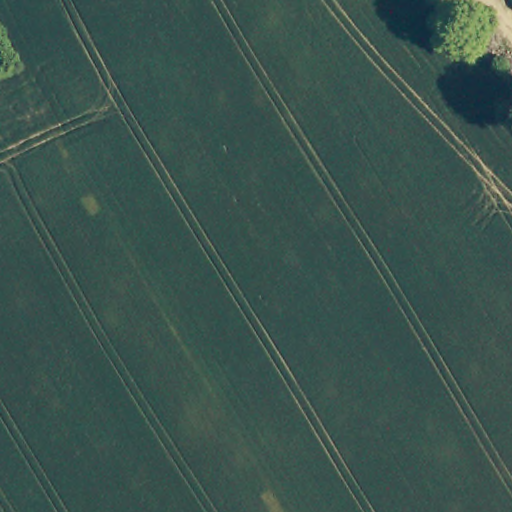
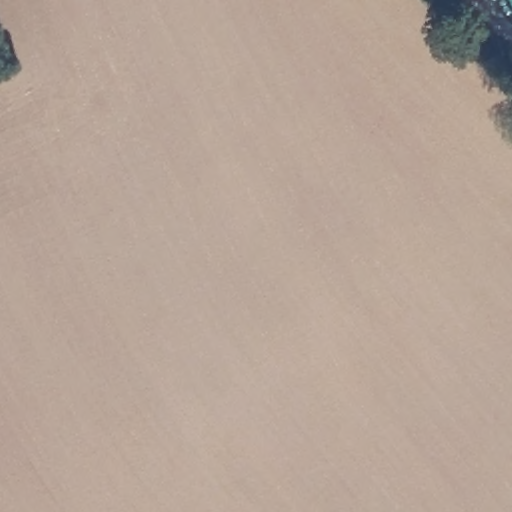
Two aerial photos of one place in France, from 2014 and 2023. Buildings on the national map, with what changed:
unchanged [(512,10),(507,0),(512,0),(512,10)]

